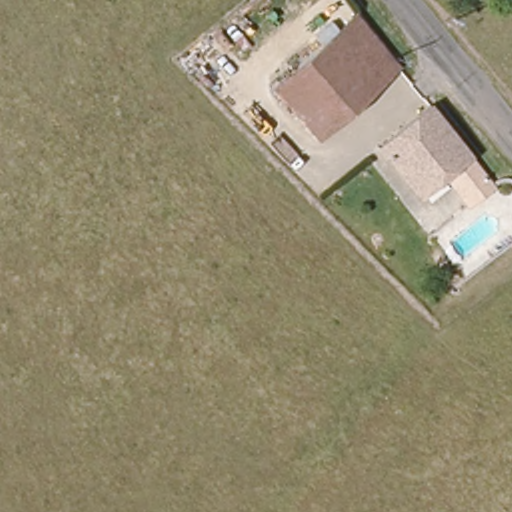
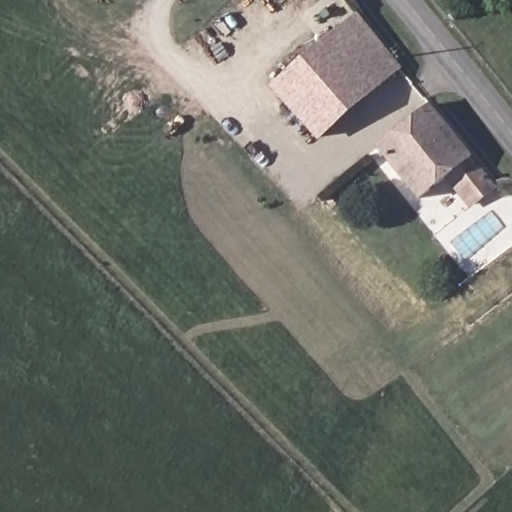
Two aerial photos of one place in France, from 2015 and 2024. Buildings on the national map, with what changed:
unchanged [(314,141),(274,89),(365,17),(407,67),(314,141)]
unchanged [(481,202),(455,169),(393,216),(353,169),(433,107),(498,188),(481,202)]

